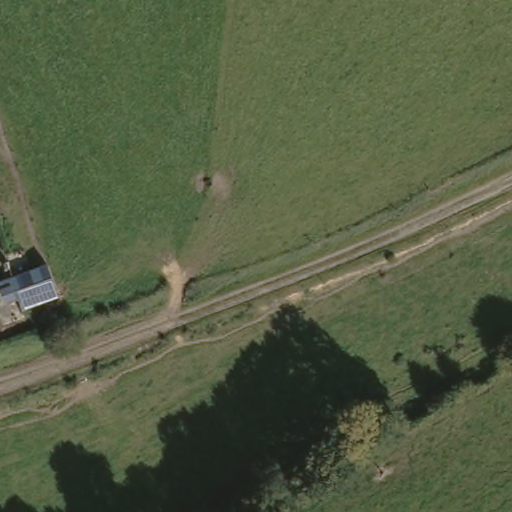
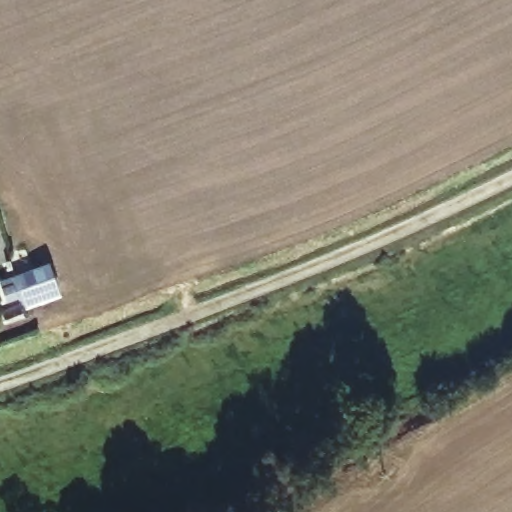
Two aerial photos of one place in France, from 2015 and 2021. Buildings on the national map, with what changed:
unchanged [(24,310),(20,299),(6,305),(0,290),(0,280),(50,262),(63,297),(24,310)]

